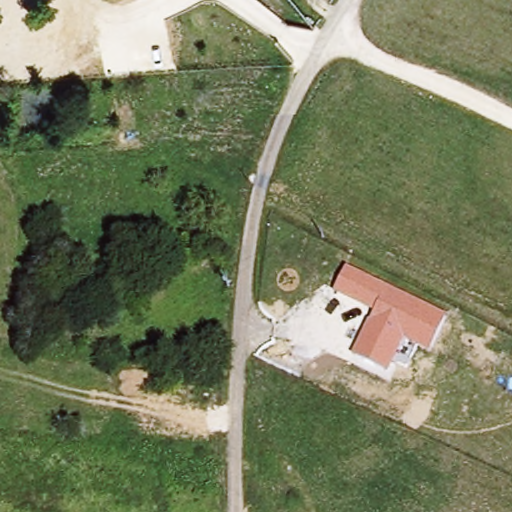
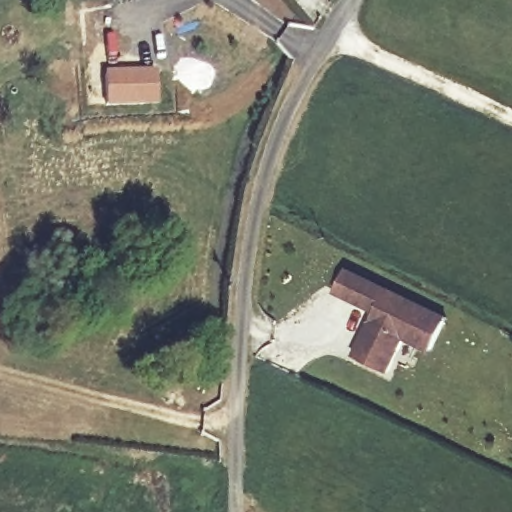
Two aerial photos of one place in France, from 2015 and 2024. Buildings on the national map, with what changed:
new [(158,107),(106,110),(105,74),(157,71),(158,107)]
unchanged [(447,317),(432,353),(405,341),(390,372),(353,355),(372,313),(334,296),(345,269),(447,317)]

